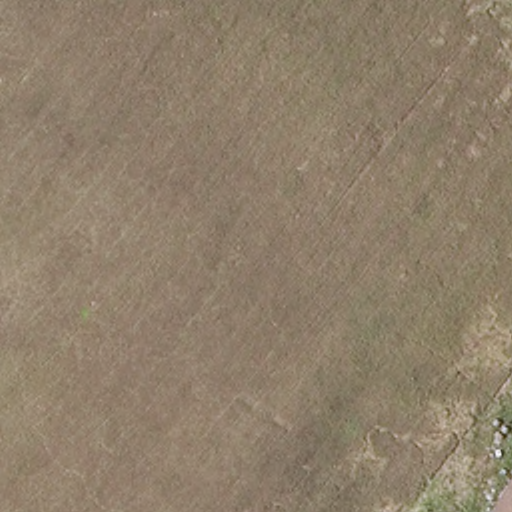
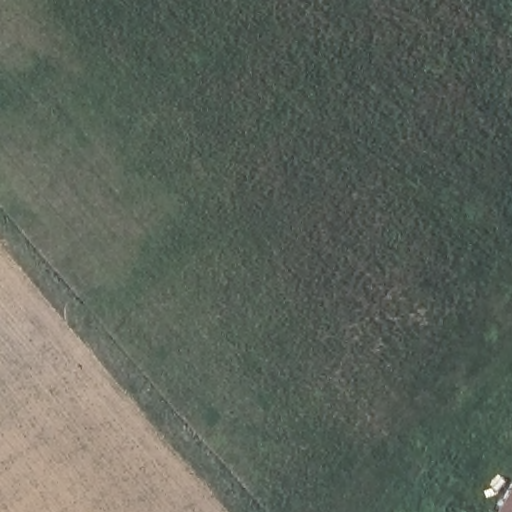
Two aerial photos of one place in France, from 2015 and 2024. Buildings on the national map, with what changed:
unchanged [(512,488),(512,512),(496,512),(512,488)]

